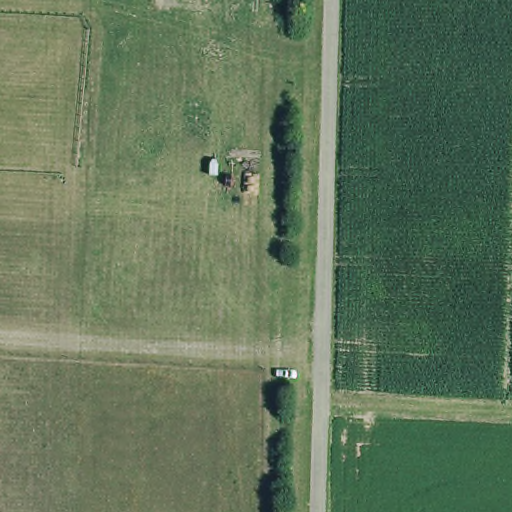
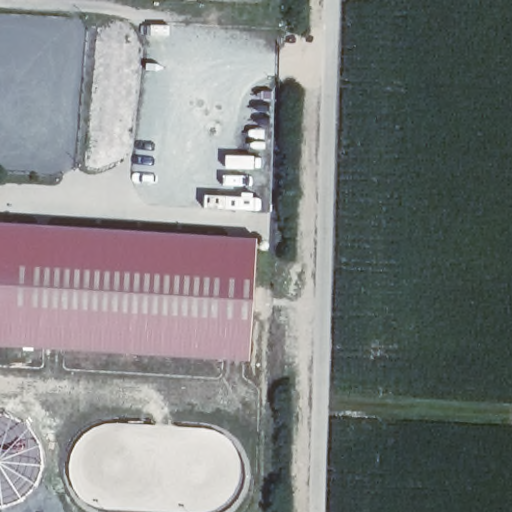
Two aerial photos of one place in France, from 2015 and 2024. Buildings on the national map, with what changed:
new [(254,238),(247,363),(0,349),(0,222),(254,238)]

